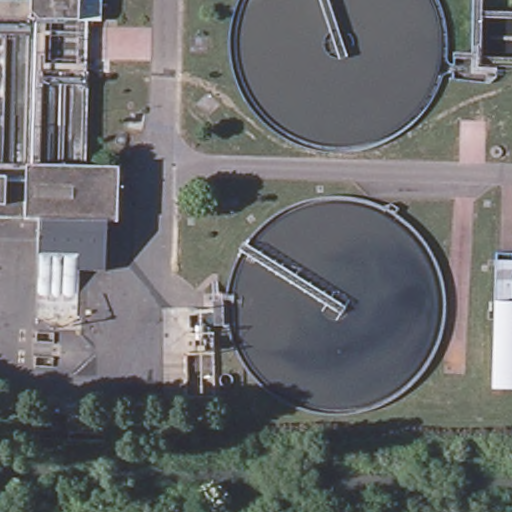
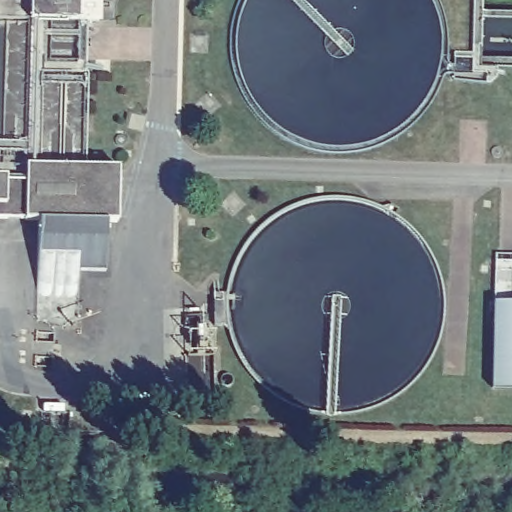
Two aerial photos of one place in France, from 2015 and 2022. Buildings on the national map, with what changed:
unchanged [(36,0),(83,0),(83,26),(35,24),(36,0)]
unchanged [(31,166),(123,170),(121,224),(111,224),(44,221),(29,220),(30,180),(31,166)]
unchanged [(0,218),(0,178),(30,180),(29,220),(0,218)]
unchanged [(111,224),(110,273),(85,272),(83,300),(43,297),(44,221),(111,224)]

